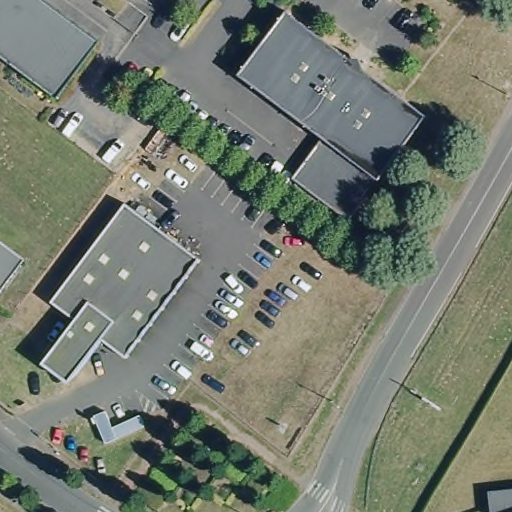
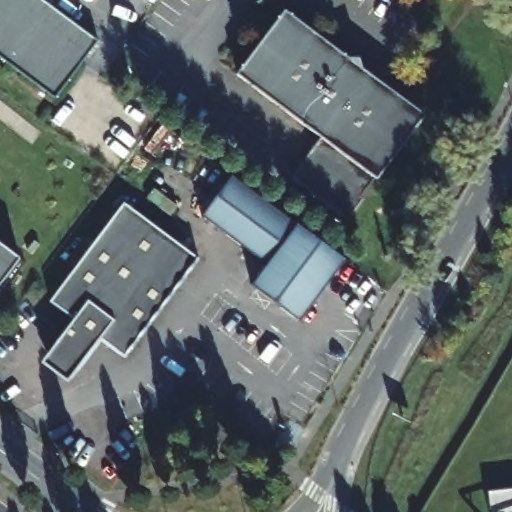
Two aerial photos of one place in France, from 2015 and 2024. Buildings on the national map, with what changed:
unchanged [(86,65),(60,100),(0,56),(0,0),(46,0),(103,42),(86,65)]
unchanged [(421,112),(340,219),(285,177),(315,137),(231,74),(283,7),(396,94),(421,112)]
new [(267,263),(205,215),(234,175),(338,254),(345,261),(300,319),(252,285),(267,263)]
unchanged [(197,266),(122,365),(98,347),(72,382),(46,362),(72,327),(48,309),(122,210),(197,266)]
unchanged [(20,260),(0,286),(0,245),(11,253),(20,260)]
unchanged [(512,495),(512,512),(495,512),(493,497),(512,495)]

